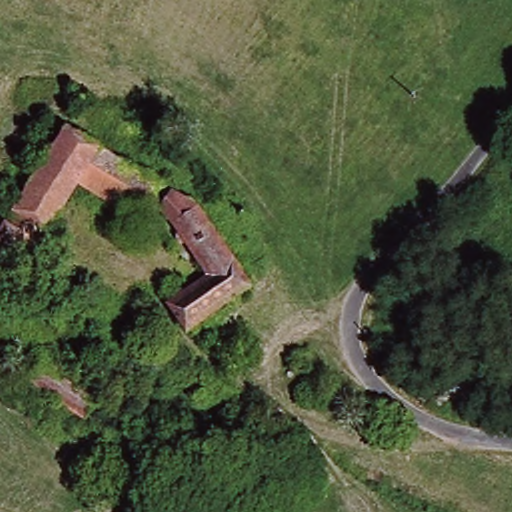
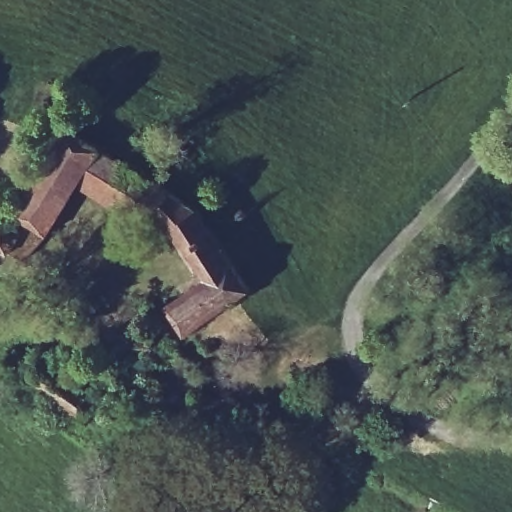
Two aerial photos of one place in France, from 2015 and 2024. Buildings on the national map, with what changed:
unchanged [(210,268),(181,226),(154,197),(128,230),(113,217),(90,186),(78,178),(53,220),(25,254),(0,238),(0,232),(68,130),(203,211),(253,291),(189,326),(169,294),(210,268)]
unchanged [(61,301),(65,303),(73,295),(69,291),(79,280),(93,292),(81,308),(89,316),(79,327),(69,317),(56,306),(61,301)]
unchanged [(124,428),(128,432),(117,446),(23,375),(41,351),(105,400),(98,408),(124,428)]

